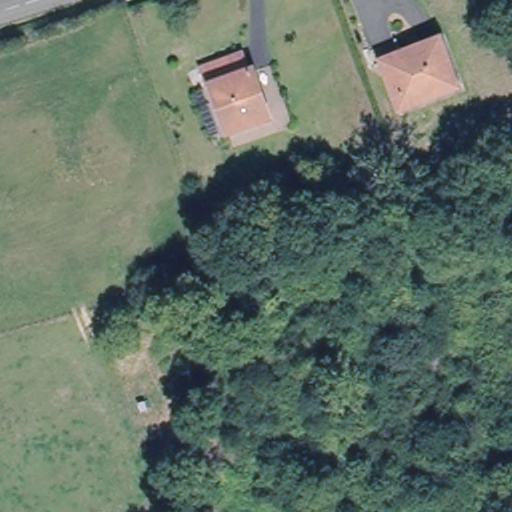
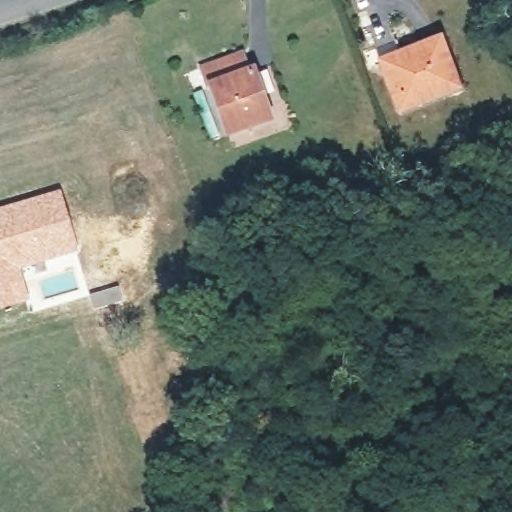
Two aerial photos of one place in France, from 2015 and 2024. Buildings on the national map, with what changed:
unchanged [(438,38),(456,84),(398,105),(381,59),(438,38)]
unchanged [(267,115),(230,129),(212,79),(206,81),(201,69),(240,55),(245,67),(250,65),(267,115)]
new [(79,250),(20,268),(30,299),(0,309),(0,308),(0,206),(60,189),(79,250)]

